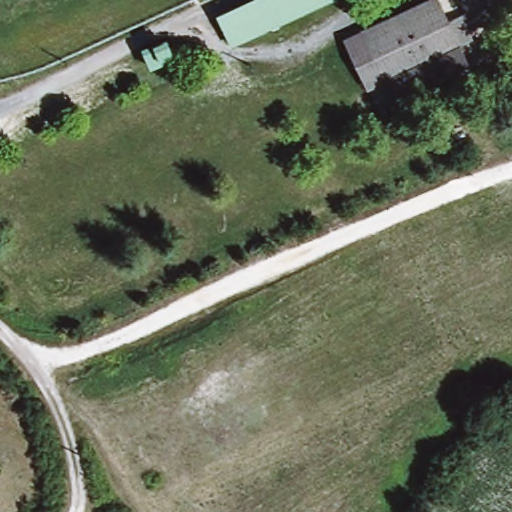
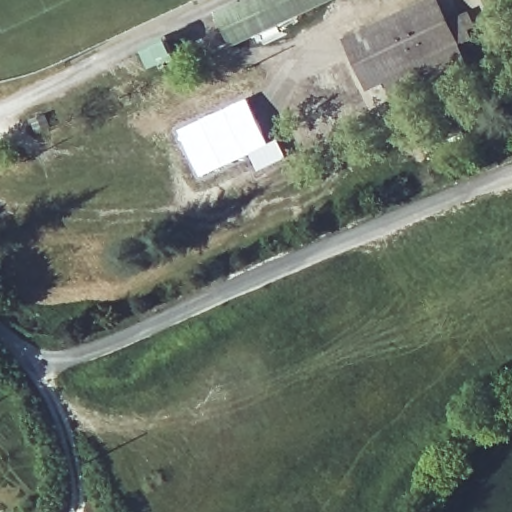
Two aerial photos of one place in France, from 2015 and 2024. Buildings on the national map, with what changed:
unchanged [(234,46),(218,12),(244,0),(335,0),(234,46)]
unchanged [(363,87),(342,41),(428,0),(431,0),(441,21),(453,15),(464,39),(451,45),(380,79),(363,87)]
unchanged [(492,9),(488,0),(512,0),(492,9)]
unchanged [(139,50),(161,41),(166,54),(145,63),(139,50)]
unchanged [(397,114),(380,79),(451,45),(467,80),(397,114)]
new [(287,157),(257,171),(249,154),(199,177),(176,130),(247,97),(269,142),(278,138),(287,157)]

